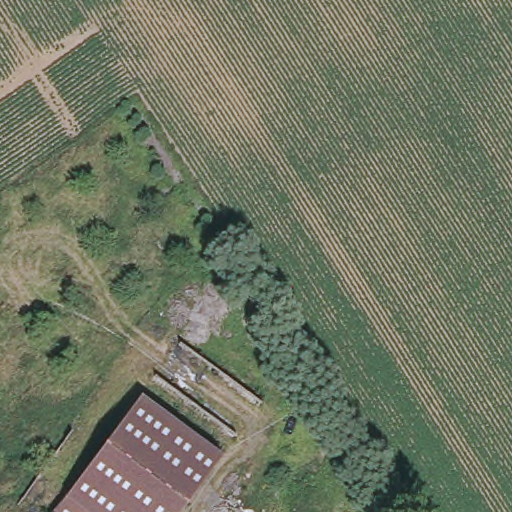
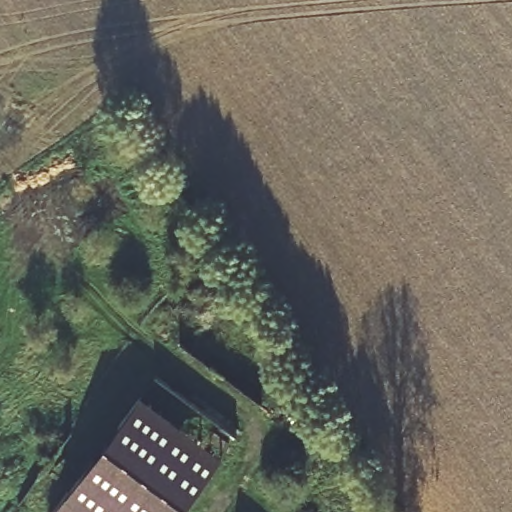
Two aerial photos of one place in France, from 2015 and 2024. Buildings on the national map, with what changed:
unchanged [(180,512),(54,512),(138,395),(222,455),(180,512)]

